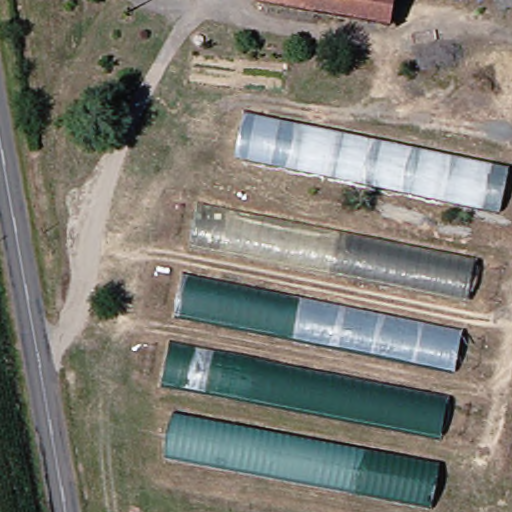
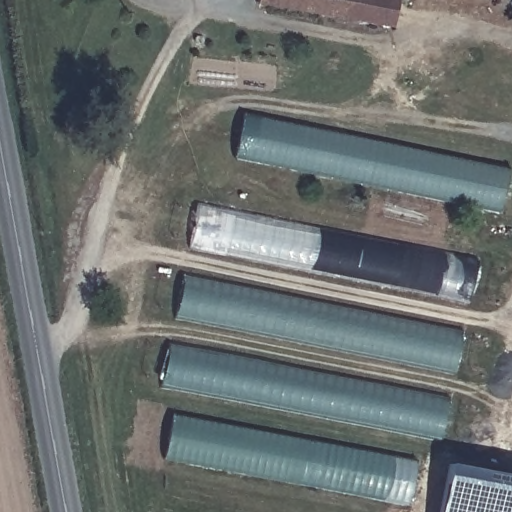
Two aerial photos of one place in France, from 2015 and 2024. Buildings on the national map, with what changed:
unchanged [(259,1),(259,0),(398,0),(394,26),(259,1)]
unchanged [(246,111),(511,167),(502,211),(237,156),(246,111)]
unchanged [(481,256),(473,302),(195,247),(201,203),(481,256)]
unchanged [(187,272),(466,326),(459,367),(177,312),(187,272)]
unchanged [(451,393),(442,438),(163,386),(172,340),(451,393)]
unchanged [(435,509),(169,456),(177,411),(448,458),(435,509)]
new [(450,464),(512,475),(512,512),(441,512),(450,464)]

